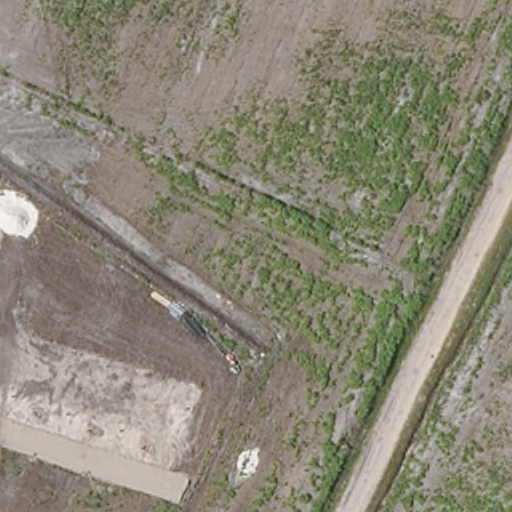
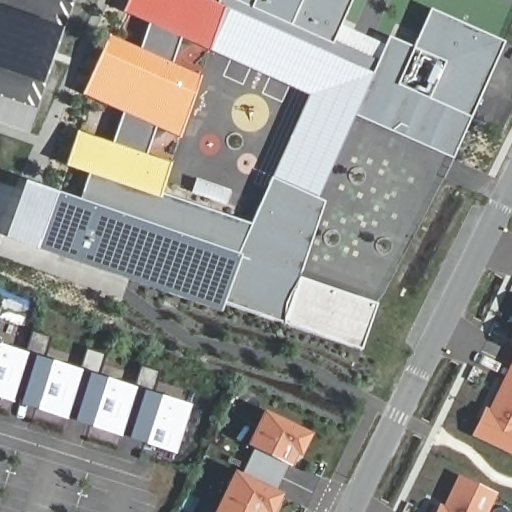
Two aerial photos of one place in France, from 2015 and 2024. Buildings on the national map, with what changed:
new [(81,198),(88,172),(66,165),(77,131),(113,142),(123,111),(83,93),(110,34),(141,48),(150,23),(123,12),(128,0),(354,0),(343,28),(385,46),(390,36),(414,47),(431,8),(505,41),(453,158),(359,115),(373,72),(225,6),(210,50),(181,38),(173,62),(202,75),(180,137),(156,126),(146,153),(171,163),(161,191),(251,222),(272,176),(325,201),(304,277),(376,305),(364,348),(285,322),(225,300),(221,311),(38,248),(58,190),(81,198)]
new [(225,6),(373,72),(359,115),(310,95),(210,50),(225,6)]
new [(359,115),(325,201),(272,176),(310,95),(359,115)]
new [(38,248),(6,237),(26,179),(58,190),(38,248)]
new [(0,344),(30,353),(15,401),(0,397),(0,344)]
new [(35,354),(83,369),(69,418),(20,403),(35,354)]
new [(89,371),(139,387),(123,435),(74,420),(89,371)]
new [(493,417),(502,398),(506,400),(512,387),(512,426),(493,417)]
new [(144,388),(192,403),(177,452),(129,437),(144,388)]
new [(245,467),(249,470),(264,438),(260,436),(274,407),(316,427),(308,444),(303,442),(297,454),(282,486),(259,475),(286,489),(278,505),(274,503),(269,512),(223,512),(245,467)]
new [(455,509),(459,511),(463,504),(459,502),(465,489),(469,492),(473,484),(498,495),(490,512),(454,512),(455,509)]

